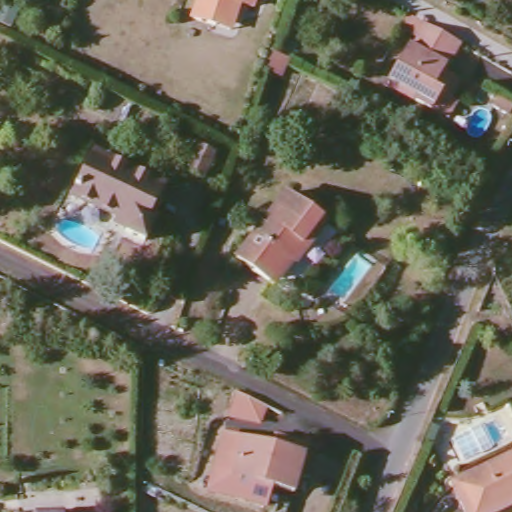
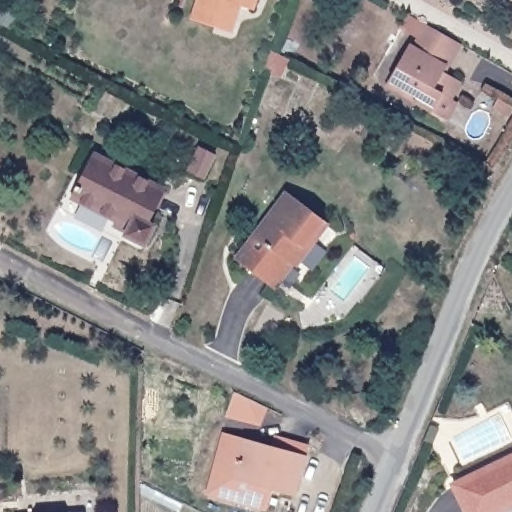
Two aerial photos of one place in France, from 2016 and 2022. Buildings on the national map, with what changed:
unchanged [(200,0),(260,0),(257,8),(244,4),(234,34),(219,28),(194,18),(200,0)]
unchanged [(410,52),(414,47),(419,49),(423,42),(405,32),(413,18),(464,48),(449,75),(410,52)]
unchanged [(262,67),(269,48),(287,58),(280,77),(262,67)]
unchanged [(419,103),(422,97),(392,80),(410,52),(449,75),(467,85),(457,102),(447,119),(437,113),(419,103)]
unchanged [(187,171),(201,146),(215,152),(202,178),(187,171)]
unchanged [(145,227),(135,245),(120,237),(125,228),(70,199),(94,149),(145,177),(152,164),(170,173),(162,186),(142,224),(145,227)]
unchanged [(234,259),(285,190),(320,215),(309,229),(315,234),(292,267),(282,260),(267,283),(234,259)]
unchanged [(292,493),(270,487),(263,510),(207,494),(224,436),(302,459),(292,493)]
unchanged [(500,512),(468,512),(454,478),(512,455),(512,507),(500,512)]

